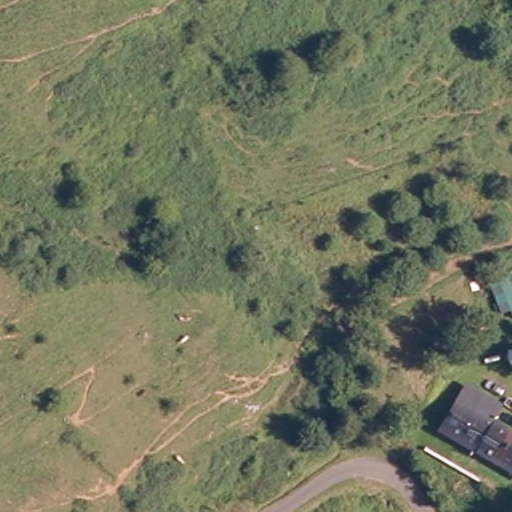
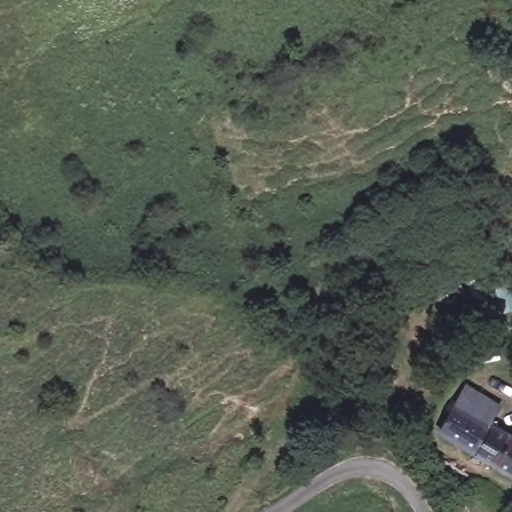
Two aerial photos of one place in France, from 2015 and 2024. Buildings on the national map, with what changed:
unchanged [(510,311),(501,313),(489,282),(508,275),(512,283),(512,314),(510,311)]
unchanged [(487,358),(512,374),(512,409),(500,427),(458,401),(487,358)]
unchanged [(458,401),(500,427),(512,435),(512,477),(494,466),(438,429),(458,401)]

